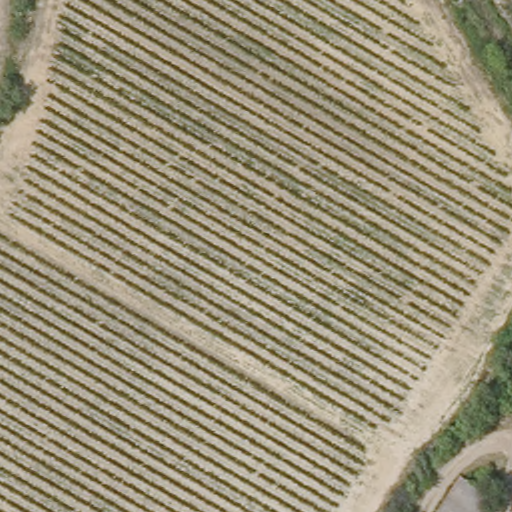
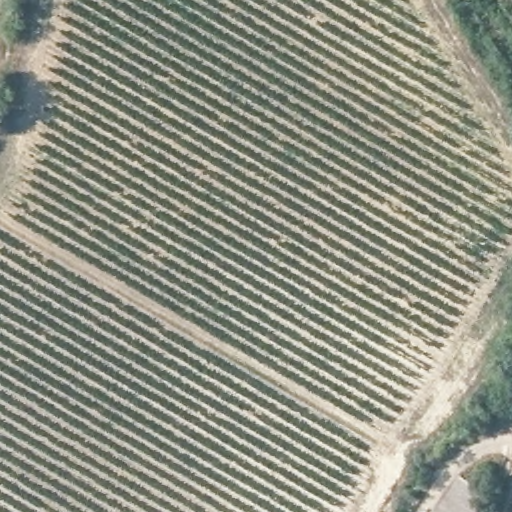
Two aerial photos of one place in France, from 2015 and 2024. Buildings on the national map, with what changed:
unchanged [(454,480),(479,502),(475,512),(431,512),(454,480)]

